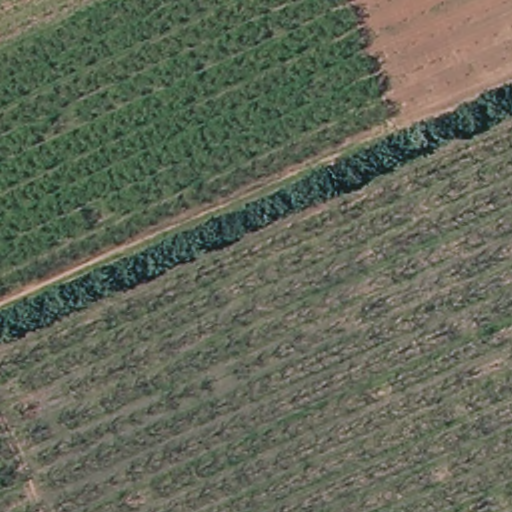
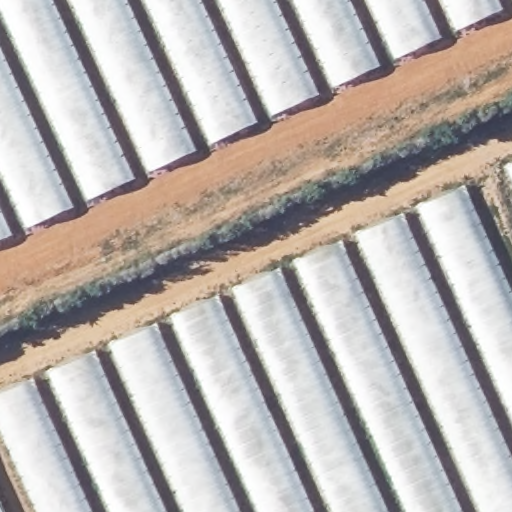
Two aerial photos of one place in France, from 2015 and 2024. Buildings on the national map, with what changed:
new [(0,240),(0,0),(512,0),(512,4),(0,240)]
new [(509,166),(512,165),(512,173),(509,166)]
new [(37,512),(0,430),(0,393),(462,187),(512,300),(512,512),(37,512)]

